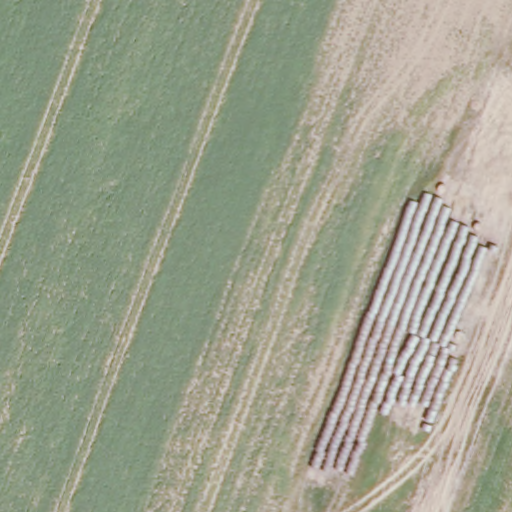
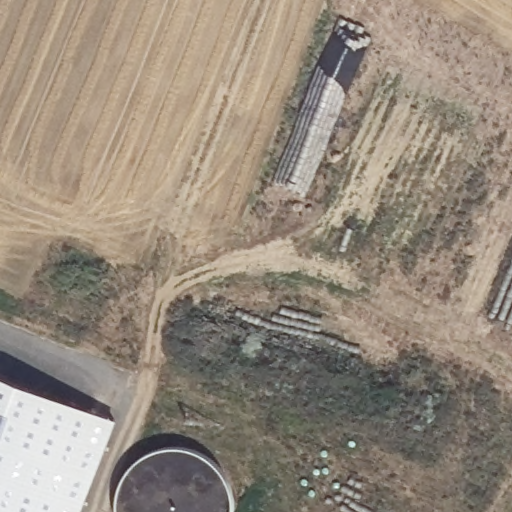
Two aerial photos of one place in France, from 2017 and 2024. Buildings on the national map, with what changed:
new [(81,512),(0,512),(0,371),(119,417),(81,512)]

